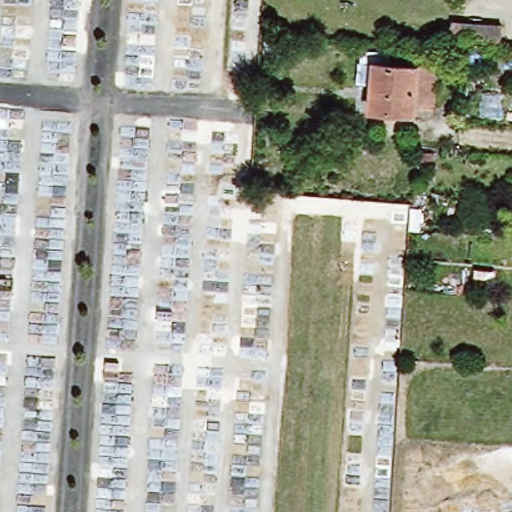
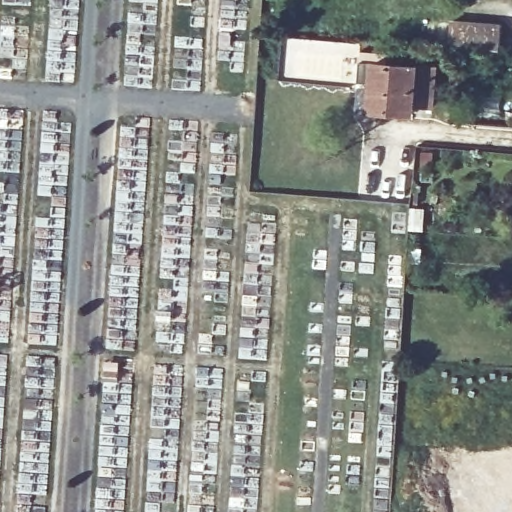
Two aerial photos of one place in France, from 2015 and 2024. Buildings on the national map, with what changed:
unchanged [(504,28),(504,51),(451,47),(452,25),(504,28)]
new [(286,36),(360,44),(359,62),(346,61),(344,81),(283,77),(286,36)]
unchanged [(434,108),(413,107),(412,117),(371,114),(373,83),(358,82),(360,57),(376,59),(437,64),(434,108)]

